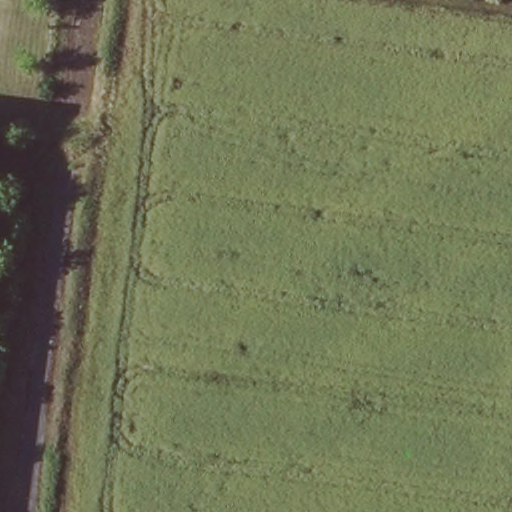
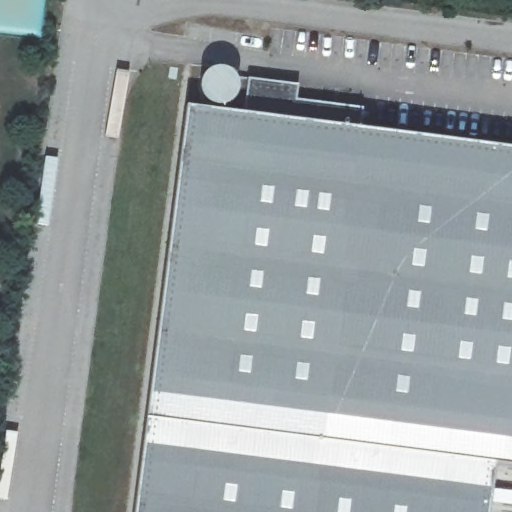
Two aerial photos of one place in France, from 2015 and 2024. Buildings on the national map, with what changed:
new [(214,67),(216,67),(223,68),(229,70),(235,74),(237,79),(238,81),(248,79),(300,85),(297,102),(363,110),(361,128),(512,148),(512,467),(497,465),(491,512),(134,512),(186,105),(208,108),(207,103),(204,99),(202,94),(200,85),(203,76),(207,71),(211,68),(214,67)]
unchanged [(0,149),(0,135),(2,136),(0,149)]

